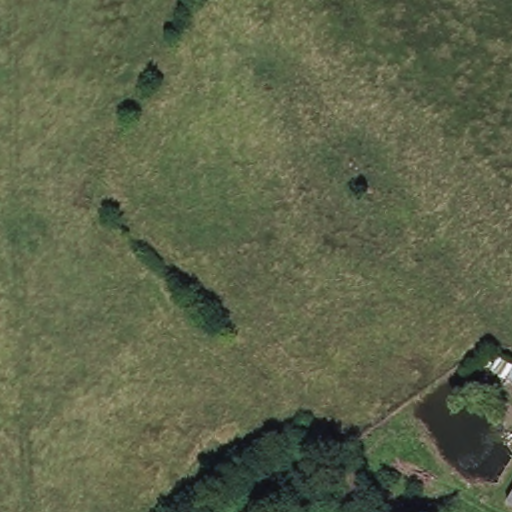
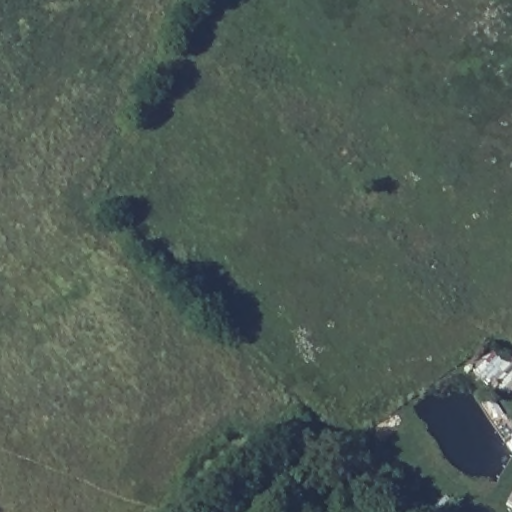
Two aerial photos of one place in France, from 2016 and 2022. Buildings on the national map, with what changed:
unchanged [(512,497),(512,505),(508,502),(512,497)]

